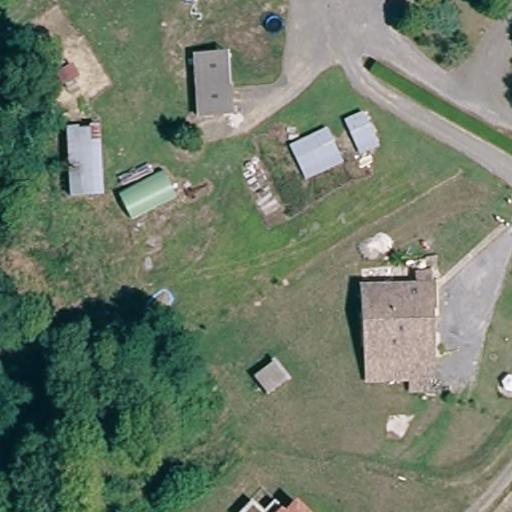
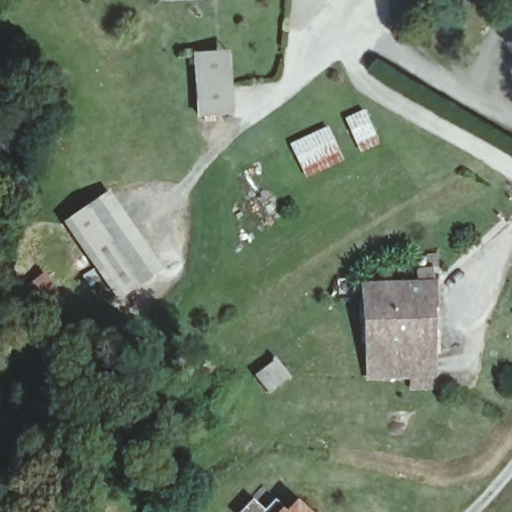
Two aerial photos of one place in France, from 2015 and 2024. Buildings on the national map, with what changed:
unchanged [(193,55),(228,52),(232,116),(197,118),(193,55)]
unchanged [(380,145),(359,155),(343,119),(363,110),(380,145)]
demolished [(70,196),(66,128),(97,126),(104,196),(70,196)]
unchanged [(329,128),(341,155),(305,172),(293,144),(329,128)]
new [(63,223),(110,192),(163,270),(116,301),(63,223)]
unchanged [(428,287),(429,315),(421,316),(422,381),(418,381),(418,391),(405,391),(404,382),(397,381),(365,381),(364,291),(428,287)]
unchanged [(267,396),(253,375),(275,358),(288,378),(267,396)]
unchanged [(264,510),(274,500),(286,510),(295,500),(308,512),(241,512),(252,501),(264,510)]

